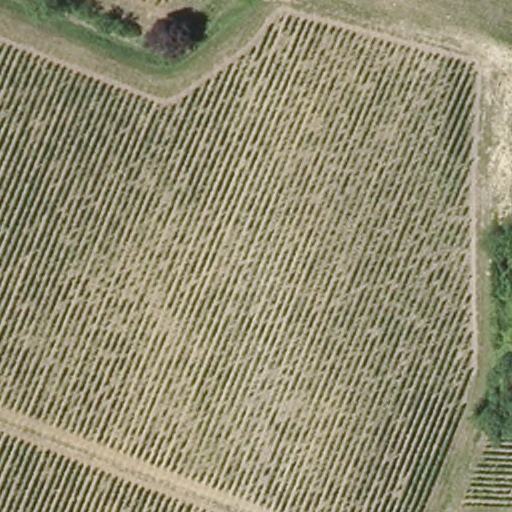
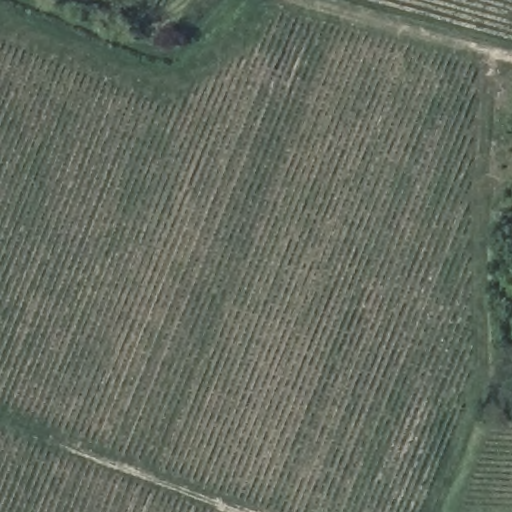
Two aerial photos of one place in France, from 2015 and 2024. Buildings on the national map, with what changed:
[]

